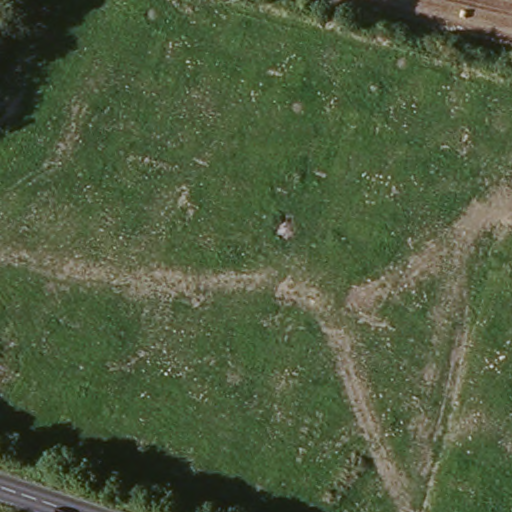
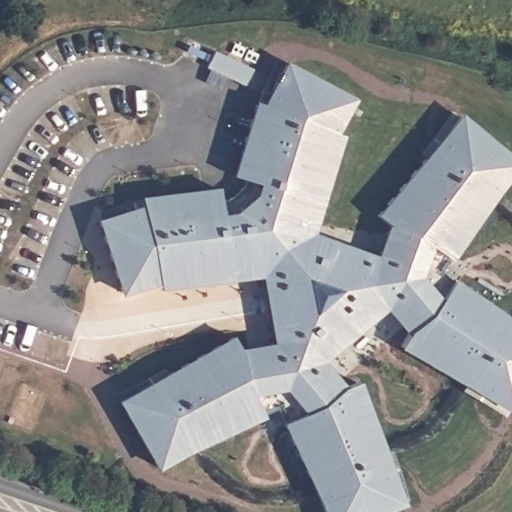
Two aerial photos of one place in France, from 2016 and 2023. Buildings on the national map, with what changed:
new [(245,89),(207,72),(216,57),(252,75),(245,89)]
new [(338,143),(309,239),(377,262),(388,228),(377,221),(460,122),(512,165),(512,171),(441,276),(512,326),(512,406),(508,412),(397,349),(410,337),(386,307),(321,364),(341,393),(356,387),(401,506),(386,512),(322,512),(277,411),(157,471),(122,405),(231,343),(239,355),(273,348),(265,305),(184,322),(112,361),(70,358),(79,317),(69,311),(61,298),(84,239),(94,212),(145,213),(145,205),(217,194),(220,208),(229,207),(244,192),(245,183),(232,181),(257,111),(265,113),(284,70),(352,103),(331,139),(338,143)]

